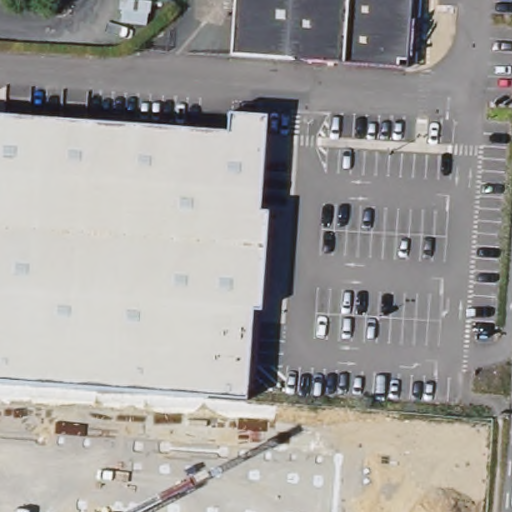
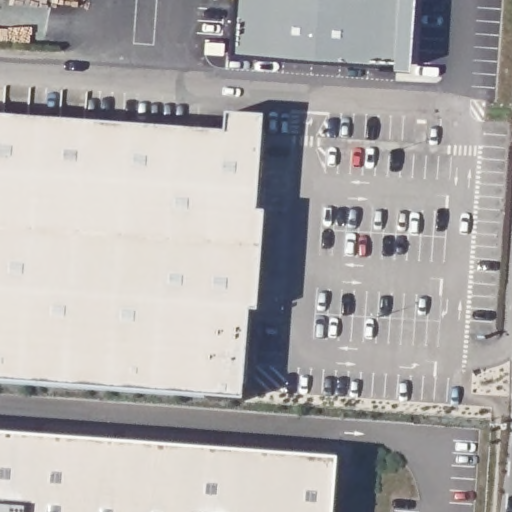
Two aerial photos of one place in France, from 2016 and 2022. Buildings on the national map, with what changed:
demolished [(150,0),(177,0),(177,2),(150,0)]
unchanged [(395,59),(395,66),(227,56),(230,0),(409,0),(405,47),(405,60),(395,59)]
unchanged [(259,212),(266,213),(260,315),(254,314),(245,398),(0,380),(0,115),(226,131),(227,111),(266,115),(259,212)]
demolished [(89,425),(316,440),(311,512),(82,512),(89,425)]
new [(338,458),(335,512),(0,512),(0,433),(338,458)]

